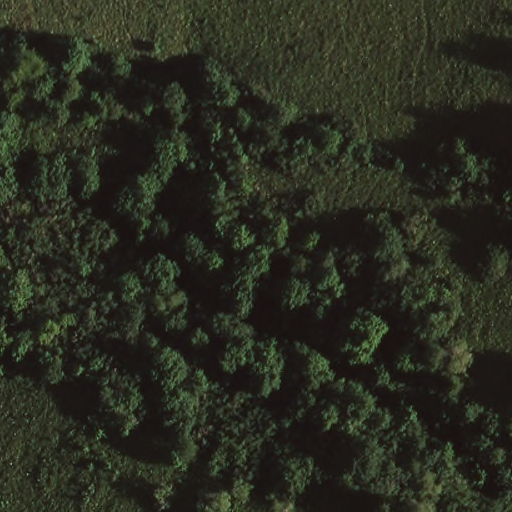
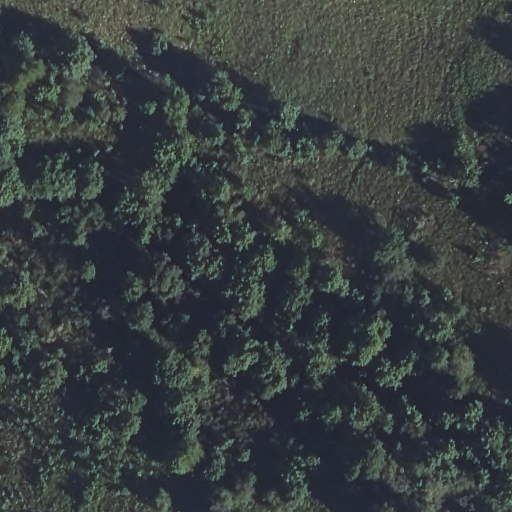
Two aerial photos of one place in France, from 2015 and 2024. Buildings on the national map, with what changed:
[]

